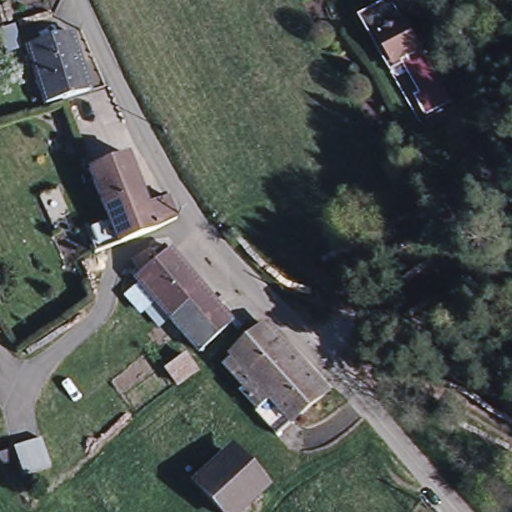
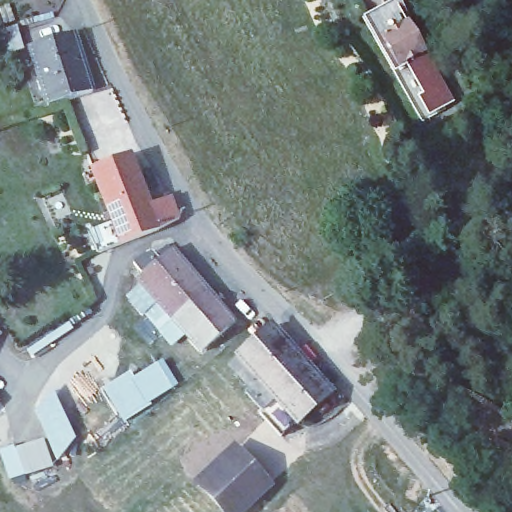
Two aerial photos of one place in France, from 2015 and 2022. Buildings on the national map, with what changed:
unchanged [(417,113),(409,99),(415,95),(393,60),(385,64),(360,19),(384,5),(410,51),(431,85),(440,100),(417,113)]
unchanged [(417,27),(423,38),(415,43),(408,32),(417,27)]
unchanged [(73,33),(92,91),(48,103),(31,45),(73,33)]
unchanged [(179,213),(157,224),(118,238),(90,163),(128,150),(149,202),(170,193),(179,213)]
unchanged [(448,192),(457,219),(442,224),(433,197),(448,192)]
unchanged [(205,352),(176,319),(165,327),(152,311),(162,303),(141,279),(142,278),(138,273),(142,269),(136,262),(152,248),(162,260),(175,249),(208,287),(239,322),(205,352)]
unchanged [(242,346),(275,317),(307,353),(275,383),(263,370),(242,346)]
unchanged [(307,353),(334,382),(301,412),(275,383),(307,353)]
new [(129,370),(133,377),(162,357),(176,385),(125,420),(104,387),(129,370)]
unchanged [(301,412),(285,426),(263,402),(265,400),(250,382),(263,370),(275,383),(301,412)]
new [(55,390),(76,437),(58,460),(35,411),(55,390)]
unchanged [(43,439),(53,468),(25,477),(15,449),(43,439)]
unchanged [(240,512),(225,512),(197,483),(230,453),(264,489),(240,512)]

